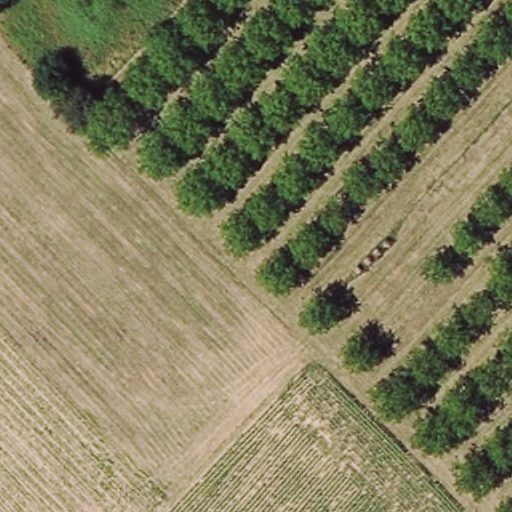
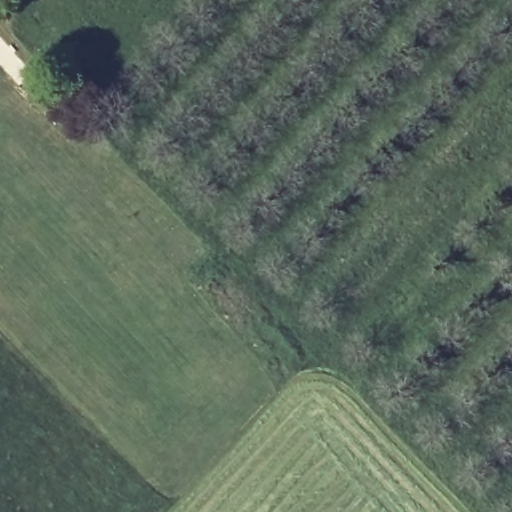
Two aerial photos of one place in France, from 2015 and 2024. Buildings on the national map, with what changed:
[]

